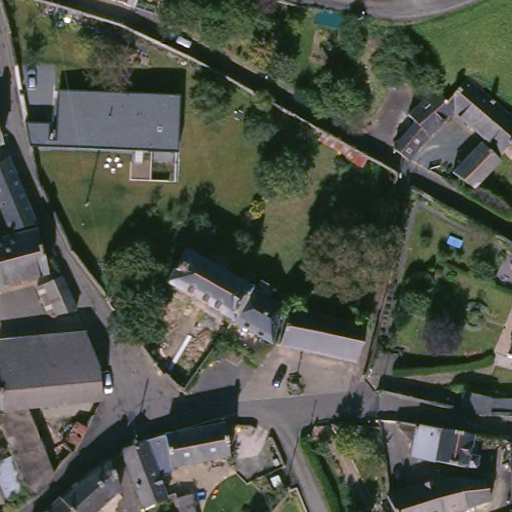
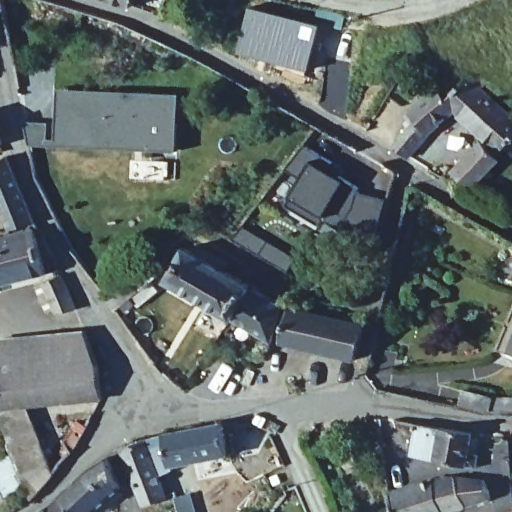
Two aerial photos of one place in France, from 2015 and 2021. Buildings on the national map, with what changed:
unchanged [(147,0),(169,0),(167,6),(147,0)]
new [(250,8),(319,25),(308,71),(305,70),(241,54),(239,53),(250,8)]
new [(319,9),(346,16),(342,31),(315,24),(319,9)]
unchanged [(476,78),(512,108),(512,153),(511,154),(464,113),(456,101),(476,78)]
unchanged [(437,136),(419,160),(401,146),(425,121),(416,113),(447,89),(456,101),(464,113),(437,136)]
unchanged [(57,145),(58,91),(179,96),(178,150),(57,145)]
unchanged [(0,105),(3,104),(12,139),(0,143),(0,105)]
unchanged [(482,188),(462,172),(491,143),(509,160),(482,188)]
new [(302,149),(331,164),(327,172),(359,189),(358,194),(387,200),(373,239),(344,223),(339,230),(322,220),(324,217),(290,197),(301,179),(285,171),(302,149)]
unchanged [(46,218),(20,225),(0,173),(0,165),(19,150),(46,218)]
unchanged [(57,269),(7,282),(8,285),(0,286),(0,236),(45,224),(57,269)]
unchanged [(175,282),(195,247),(209,255),(261,286),(240,319),(175,282)]
unchanged [(117,300),(140,280),(157,265),(160,269),(167,278),(149,292),(126,311),(117,300)]
unchanged [(64,309),(51,278),(69,272),(83,303),(64,309)]
unchanged [(261,286),(267,289),(287,300),(291,304),(283,345),(240,319),(261,286)]
unchanged [(364,362),(291,343),(300,307),(374,326),(364,362)]
unchanged [(0,464),(22,456),(22,455),(17,439),(16,436),(8,410),(13,409),(9,376),(8,369),(6,339),(93,331),(94,333),(108,366),(111,394),(111,401),(36,408),(62,477),(43,498),(36,494),(33,489),(13,496),(0,464)]
demolished [(174,374),(184,357),(203,372),(189,390),(174,374)]
unchanged [(0,376),(9,376),(13,409),(8,410),(0,411),(0,376)]
unchanged [(499,390),(512,390),(512,408),(496,408),(468,403),(475,384),(499,390)]
unchanged [(482,435),(481,445),(479,455),(489,457),(485,469),(417,454),(420,443),(408,427),(404,424),(403,420),(418,422),(482,435)]
unchanged [(85,421),(97,429),(84,452),(71,443),(85,421)]
unchanged [(238,455),(181,465),(180,466),(173,434),(232,423),(238,455)]
unchanged [(128,446),(153,438),(173,434),(180,466),(181,465),(182,469),(180,471),(167,476),(175,496),(151,505),(129,448),(128,446)]
unchanged [(116,456),(128,488),(102,512),(85,512),(69,496),(116,456)]
unchanged [(495,482),(501,499),(456,512),(404,512),(398,493),(464,474),(495,482)]
unchanged [(180,497),(199,493),(204,512),(185,512),(180,497)]
unchanged [(85,512),(50,512),(69,496),(85,512)]
demolished [(508,507),(508,508),(510,512),(491,512),(508,507)]

